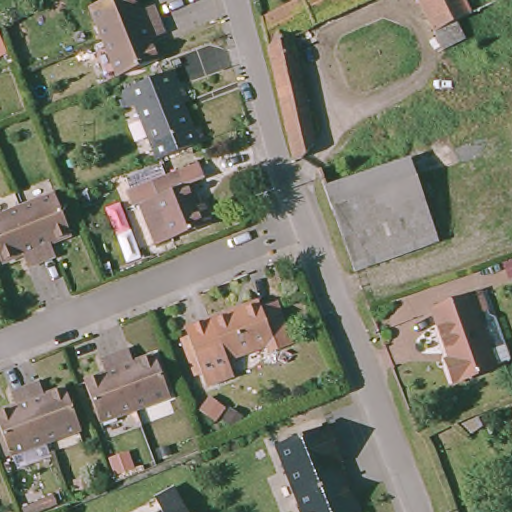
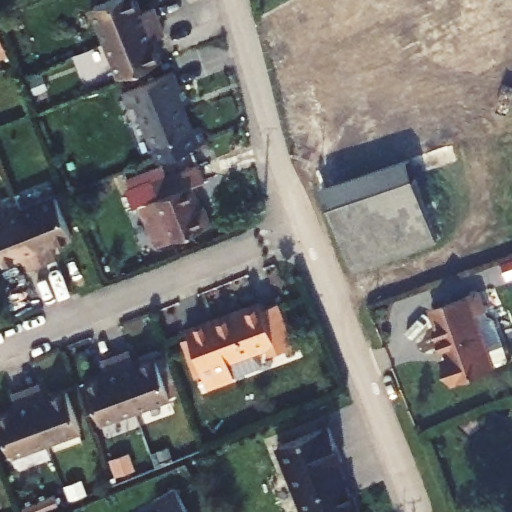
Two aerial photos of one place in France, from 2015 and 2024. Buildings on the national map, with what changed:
unchanged [(142,11),(148,25),(111,40),(96,46),(81,11),(107,0),(123,0),(130,16),(142,11)]
unchanged [(360,0),(314,20),(317,26),(311,29),(308,23),(290,36),(308,141),(295,156),(286,158),(271,92),(255,17),(289,0),(360,0)]
unchanged [(370,0),(375,0),(371,2),(370,0)]
new [(442,49),(424,0),(459,0),(473,32),(442,49)]
unchanged [(155,41),(143,46),(153,68),(112,84),(96,46),(111,40),(148,25),(155,41)]
unchanged [(136,106),(127,109),(119,90),(171,71),(177,86),(185,83),(194,102),(180,107),(191,129),(200,125),(206,140),(170,154),(159,159),(153,145),(136,106)]
unchanged [(165,243),(148,202),(141,204),(136,191),(210,161),(215,175),(202,180),(210,201),(213,200),(221,221),(177,238),(165,243)]
unchanged [(438,247),(358,277),(337,213),(330,217),(323,192),(410,163),(438,247)]
unchanged [(54,194),(70,236),(51,242),(57,257),(43,263),(26,222),(20,206),(54,194)]
unchanged [(43,263),(30,269),(22,253),(0,262),(0,260),(0,214),(20,206),(26,222),(43,263)]
unchanged [(501,271),(512,267),(512,283),(506,285),(501,271)]
unchanged [(481,296),(486,312),(477,316),(495,372),(455,387),(447,365),(451,364),(433,312),(481,296)]
unchanged [(188,332),(212,322),(262,302),(266,311),(284,304),(299,346),(280,353),(277,344),(230,360),(236,377),(209,386),(205,375),(198,377),(184,342),(190,339),(188,332)]
unchanged [(131,364),(153,356),(169,395),(132,408),(113,355),(125,351),(131,364)]
unchanged [(113,355),(132,408),(96,421),(83,382),(103,376),(98,361),(113,355)]
unchanged [(45,397),(66,390),(78,429),(44,442),(25,387),(40,382),(45,397)]
unchanged [(8,457),(0,432),(0,413),(16,407),(11,392),(25,387),(44,442),(8,457)]
unchanged [(305,508),(307,507),(283,446),(335,426),(348,461),(344,462),(356,494),(358,493),(365,512),(307,512),(305,508)]
unchanged [(191,512),(165,512),(158,499),(178,488),(191,512)]

